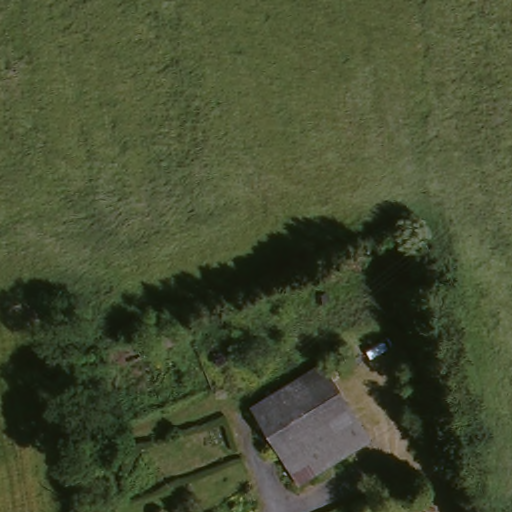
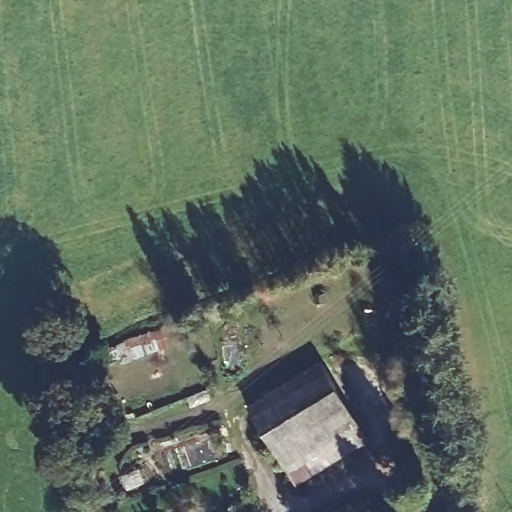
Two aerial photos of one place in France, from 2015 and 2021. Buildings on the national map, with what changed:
unchanged [(370,440),(296,484),(250,405),(322,362),(370,440)]

